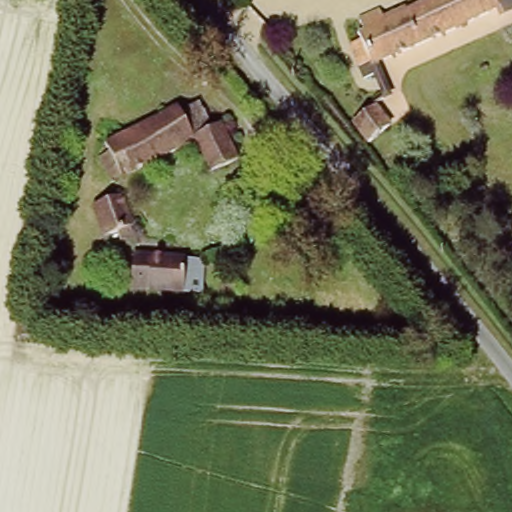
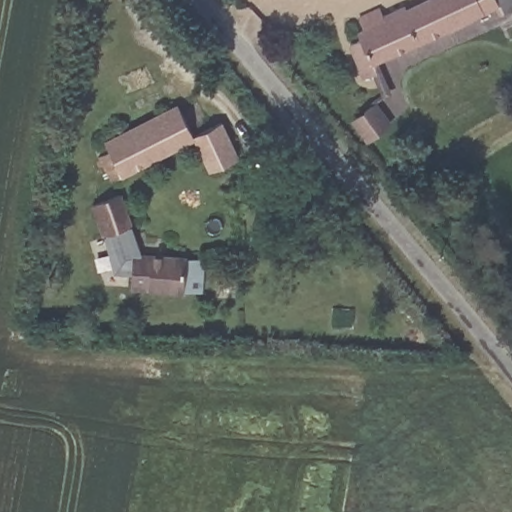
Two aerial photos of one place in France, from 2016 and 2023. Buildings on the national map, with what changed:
unchanged [(380,66),(365,72),(352,40),(362,36),(355,18),(375,10),(380,18),(427,0),(512,0),(512,14),(505,16),(501,9),(376,56),(380,66)]
unchanged [(197,111),(218,100),(242,147),(215,161),(201,136),(114,180),(107,167),(115,163),(102,137),(189,95),(197,111)]
unchanged [(387,120),(398,145),(379,154),(362,131),(387,120)]
unchanged [(140,231),(121,240),(117,230),(106,235),(93,205),(97,204),(91,191),(108,184),(113,195),(122,192),(140,231)]
unchanged [(199,254),(200,292),(155,293),(155,255),(199,254)]

